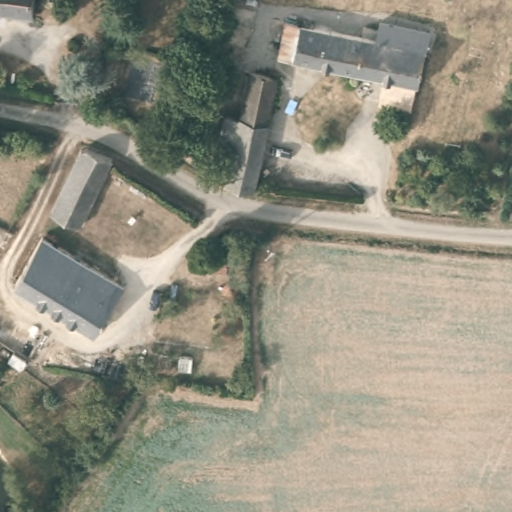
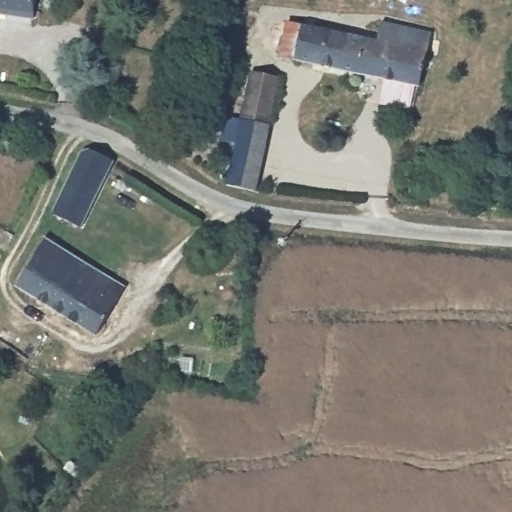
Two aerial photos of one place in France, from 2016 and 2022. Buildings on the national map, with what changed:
unchanged [(0,8),(0,0),(36,0),(34,13),(0,8)]
unchanged [(413,86),(272,56),(280,20),(371,39),(373,22),(425,33),(413,86)]
unchanged [(237,137),(224,136),(226,115),(240,117),(249,68),(279,75),(259,184),(229,181),(237,137)]
unchanged [(85,147),(116,161),(85,227),(52,212),(85,147)]
unchanged [(40,235),(125,287),(96,334),(16,286),(40,235)]

